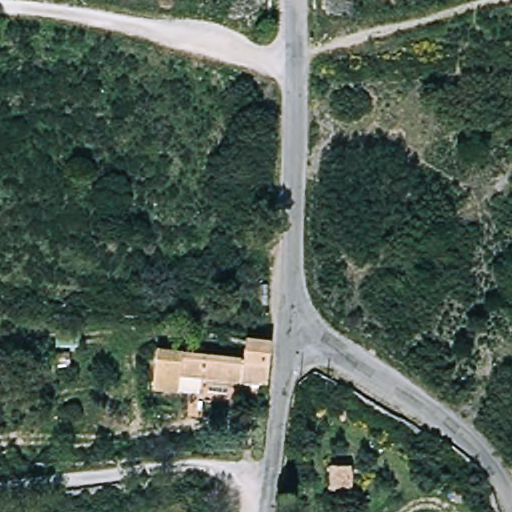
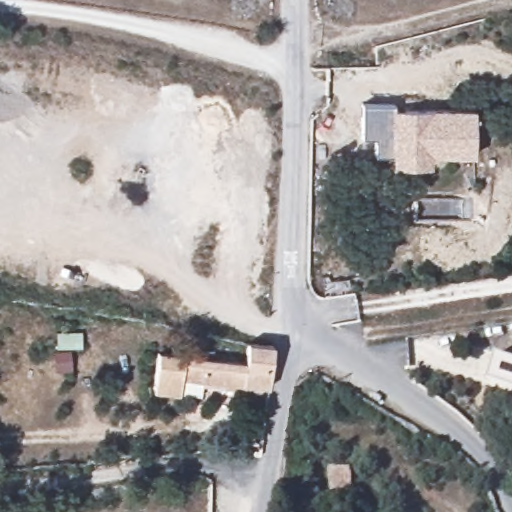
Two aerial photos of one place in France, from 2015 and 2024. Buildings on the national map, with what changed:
new [(361,108),(370,108),(393,109),(393,115),(473,117),(471,162),(427,162),(427,156),(392,155),(392,161),(369,160),(370,142),(360,142),(361,108)]
unchanged [(268,391),(243,387),(242,395),(177,386),(175,399),(164,397),(151,396),(156,353),(167,355),(246,365),(248,344),(274,348),(268,391)]
new [(512,360),(512,389),(489,382),(497,356),(512,360)]
unchanged [(348,486),(325,484),(326,463),(347,465),(348,486)]

